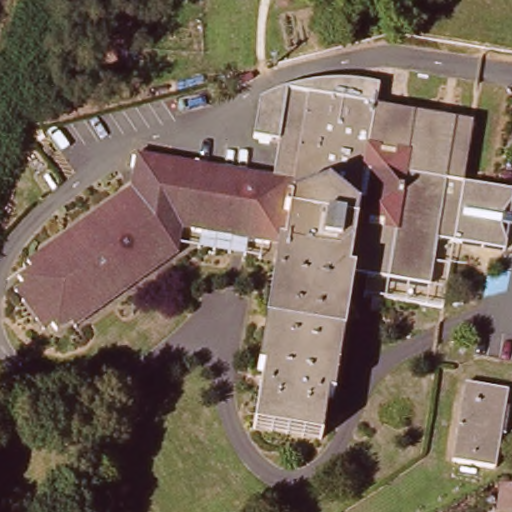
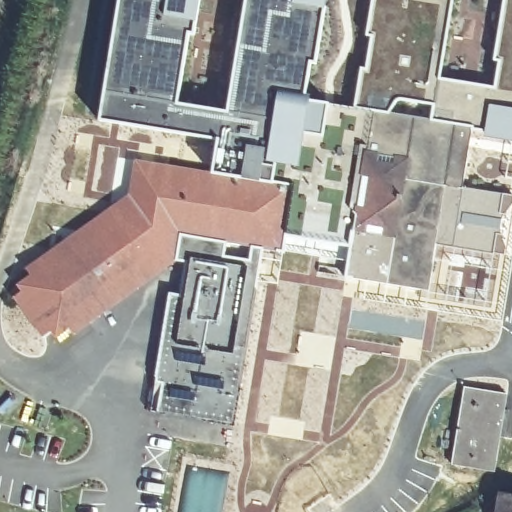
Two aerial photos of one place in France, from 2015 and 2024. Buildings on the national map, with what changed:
new [(310,63),(305,95),(310,96),(308,101),(317,103),(317,112),(307,110),(297,109),(288,164),(285,184),(273,181),(260,180),(240,176),(212,172),(218,138),(98,120),(119,0),(199,0),(193,34),(188,33),(177,105),(227,112),(245,0),(326,0),(316,64),(310,63)]
new [(495,87),(500,60),(493,60),(503,0),(512,0),(512,141),(483,136),(485,131),(470,129),(430,121),(432,105),(401,99),(398,99),(397,100),(387,115),(353,109),(360,67),(365,67),(370,36),(366,35),(372,0),(452,0),(438,79),(495,87)]
demolished [(290,92),(328,87),(377,90),(375,112),(287,96),(290,92)]
demolished [(252,143),(257,105),(282,95),(287,96),(280,149),(252,143)]
unchanged [(71,328),(58,337),(54,331),(45,337),(22,303),(30,298),(23,289),(38,280),(34,273),(48,263),(60,255),(71,248),(84,239),(95,231),(108,222),(119,215),(132,206),(142,199),(149,162),(285,184),(297,109),(317,112),(317,103),(470,129),(461,189),(511,196),(505,220),(503,229),(503,256),(437,244),(427,290),(353,277),(332,395),(328,395),(319,443),(252,432),(261,377),(280,256),(274,255),(182,239),(178,264),(165,273),(152,282),(140,290),(128,298),(116,307),(105,315),(92,323),(90,325),(77,335),(71,328)]
new [(258,272),(233,425),(156,412),(160,383),(155,382),(168,292),(178,294),(185,261),(178,260),(182,239),(225,246),(223,255),(248,260),(249,250),(261,252),(274,255),(271,274),(258,272)]
unchanged [(453,466),(466,393),(507,400),(494,473),(453,466)]
unchanged [(497,495),(512,498),(512,512),(494,512),(497,495)]

